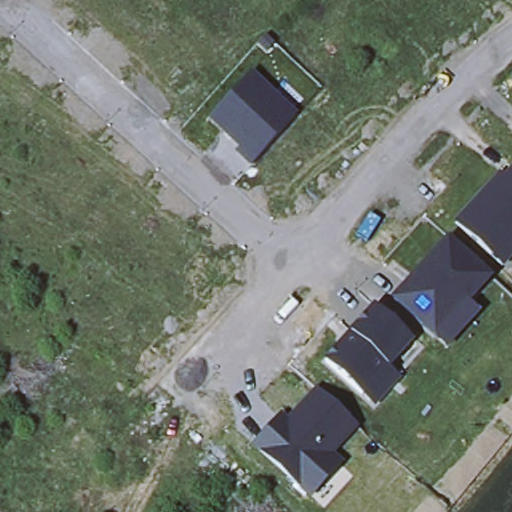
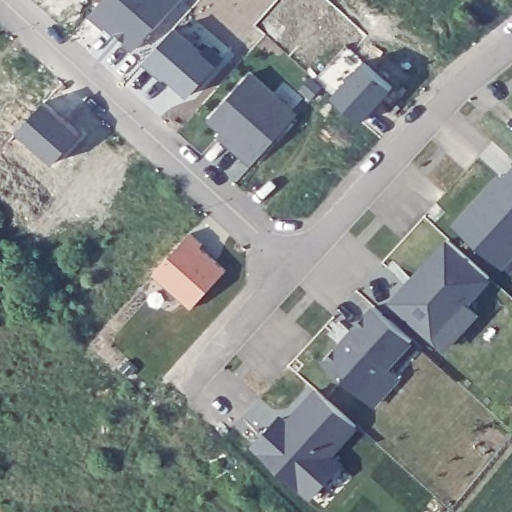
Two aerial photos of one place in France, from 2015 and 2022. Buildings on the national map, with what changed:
new [(95,10),(104,0),(179,0),(133,48),(95,10)]
new [(214,67),(185,100),(141,66),(174,31),(214,67)]
new [(391,90),(357,130),(328,102),(363,63),(391,90)]
unchanged [(300,111),(254,163),(207,117),(253,71),(300,111)]
new [(42,106),(78,139),(51,169),(14,136),(42,106)]
unchanged [(501,263),(455,221),(472,201),(476,205),(500,179),(512,167),(512,251),(501,263)]
new [(190,231),(202,242),(199,245),(225,269),(191,306),(153,271),(190,231)]
unchanged [(445,344),(433,334),(394,298),(449,237),(488,273),(465,300),(475,310),(445,344)]
unchanged [(373,402),(361,392),(325,359),(340,342),(351,331),(375,305),(410,337),(387,363),(399,374),(373,402)]
unchanged [(360,428),(335,458),(342,466),(313,499),(255,447),(281,419),(286,425),(316,391),(360,428)]

